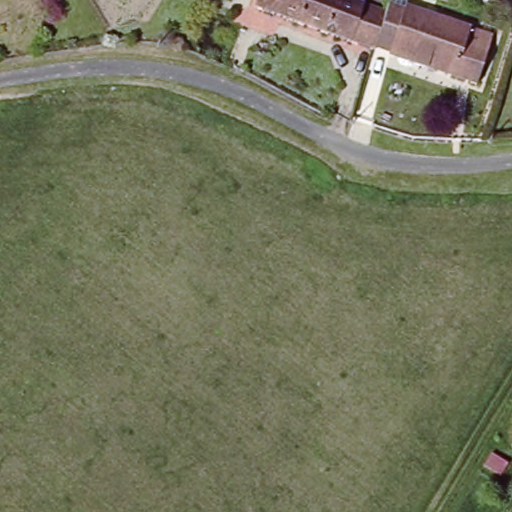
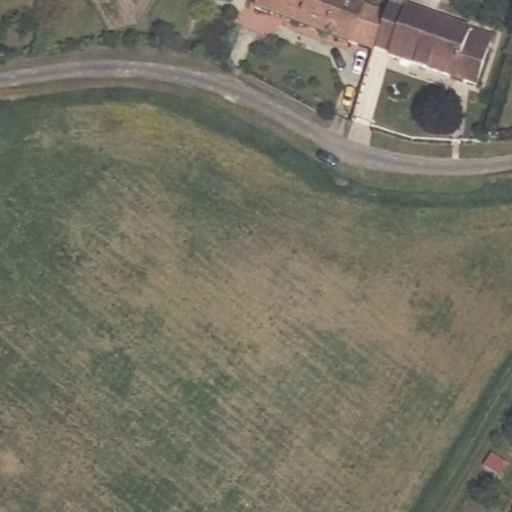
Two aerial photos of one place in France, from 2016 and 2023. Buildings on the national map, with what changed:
unchanged [(378,50),(255,7),(259,0),(390,0),(395,1),(378,50)]
unchanged [(395,1),(498,35),(482,85),(378,50),(395,1)]

